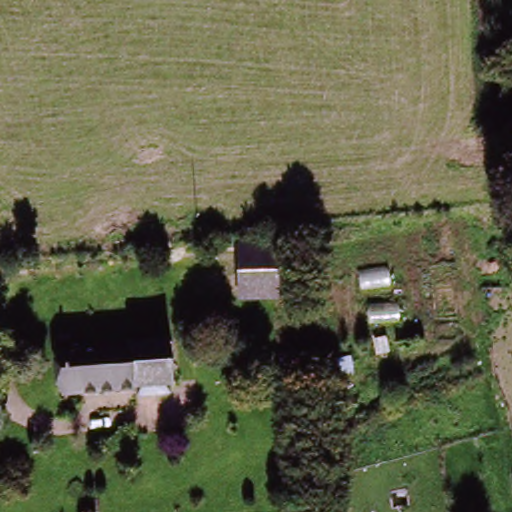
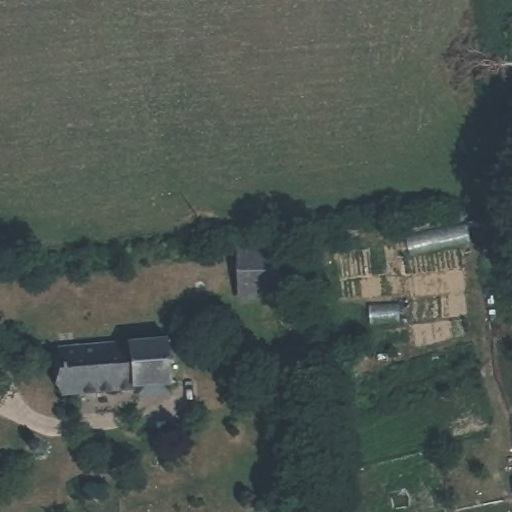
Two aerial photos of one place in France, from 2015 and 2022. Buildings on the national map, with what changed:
unchanged [(278,293),(240,296),(237,252),(275,249),(278,293)]
unchanged [(53,355),(173,343),(174,391),(54,397),(53,355)]

